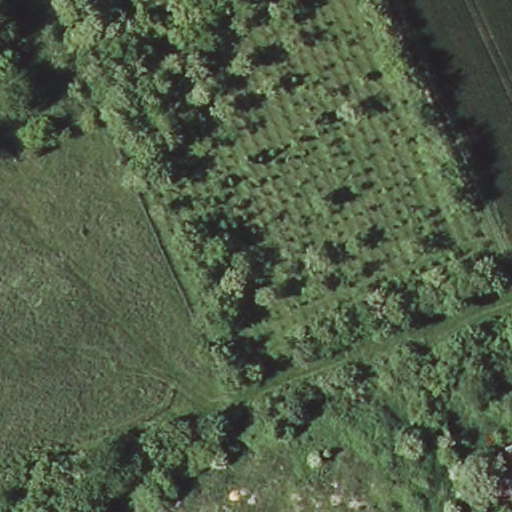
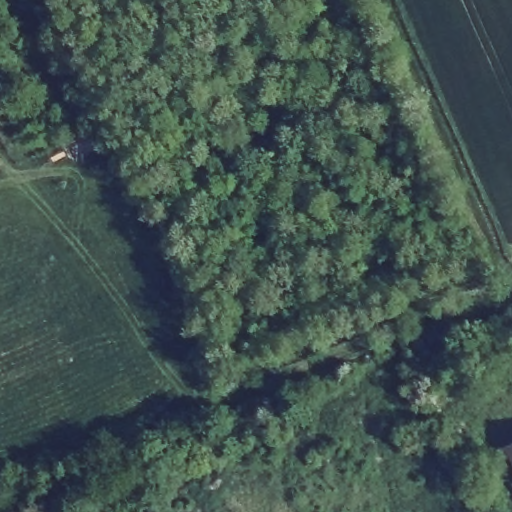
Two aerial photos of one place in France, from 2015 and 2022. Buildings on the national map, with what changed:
unchanged [(512,441),(512,464),(503,445),(512,441)]

